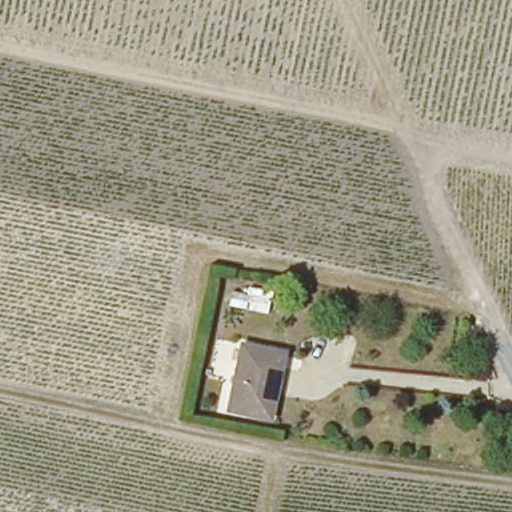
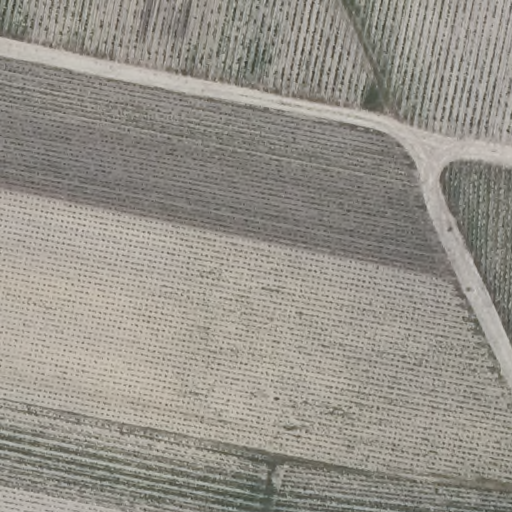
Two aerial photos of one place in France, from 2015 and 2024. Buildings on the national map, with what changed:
demolished [(224,413),(238,341),(284,351),(269,421),(224,413)]

